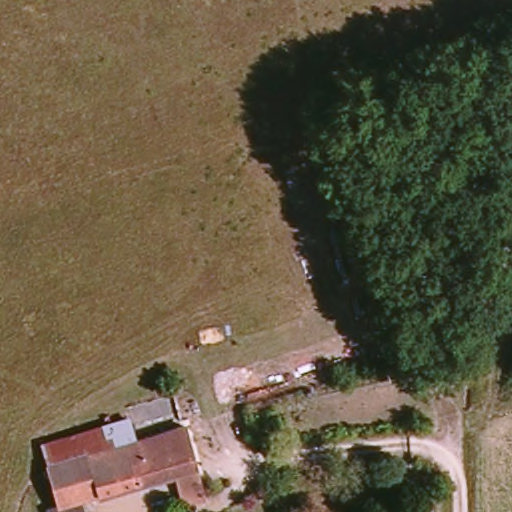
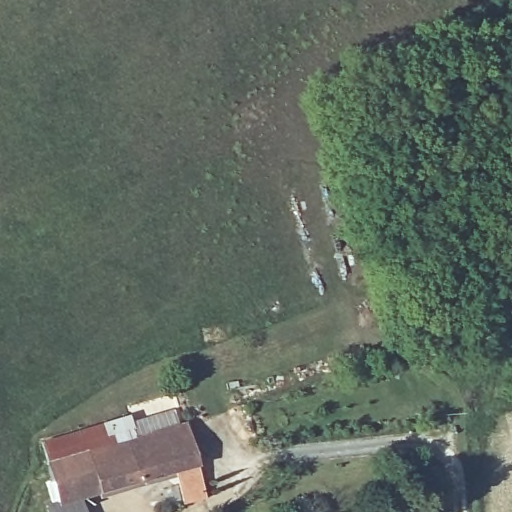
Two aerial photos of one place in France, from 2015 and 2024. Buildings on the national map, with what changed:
unchanged [(74,500),(77,512),(43,512),(43,510),(55,507),(39,465),(183,423),(193,463),(74,500)]

